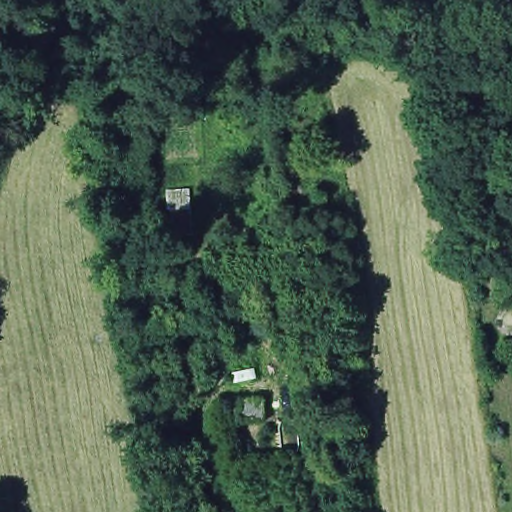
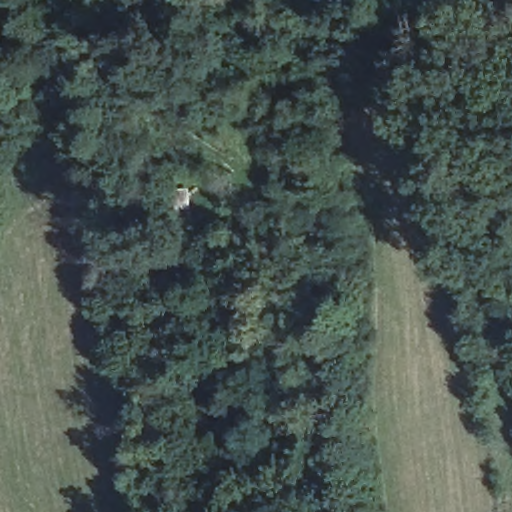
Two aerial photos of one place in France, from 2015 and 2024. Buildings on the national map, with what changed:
unchanged [(258,407),(260,427),(235,430),(233,410),(258,407)]

